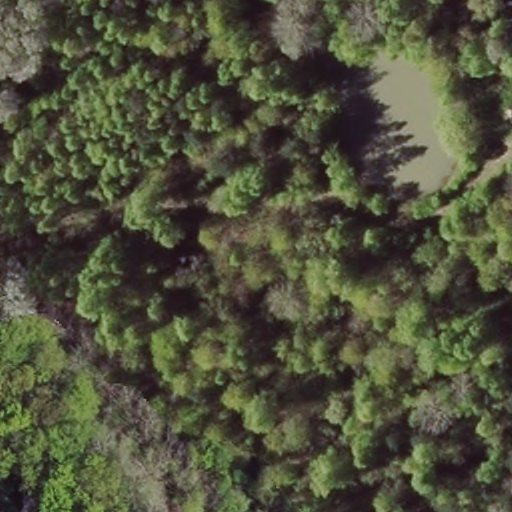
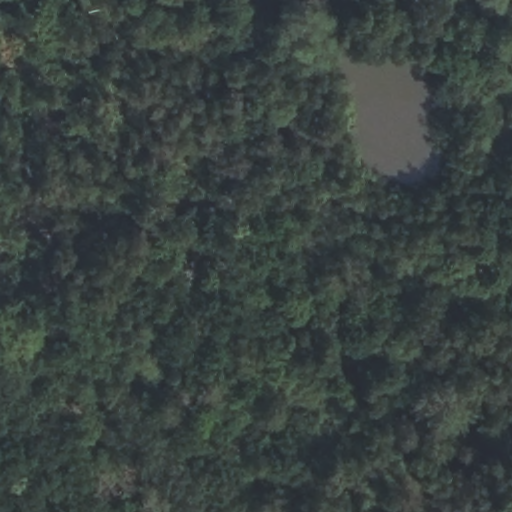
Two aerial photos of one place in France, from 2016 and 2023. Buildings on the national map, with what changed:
[]

